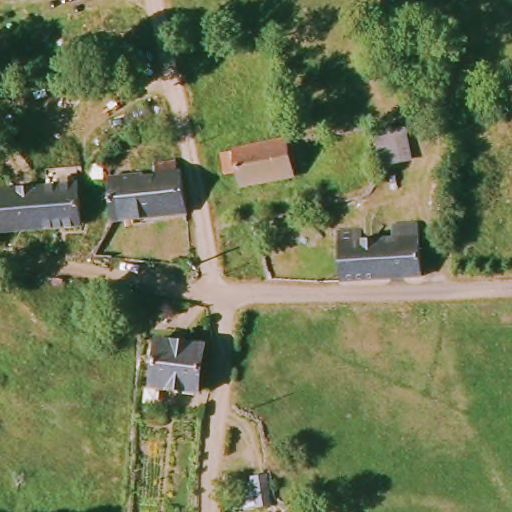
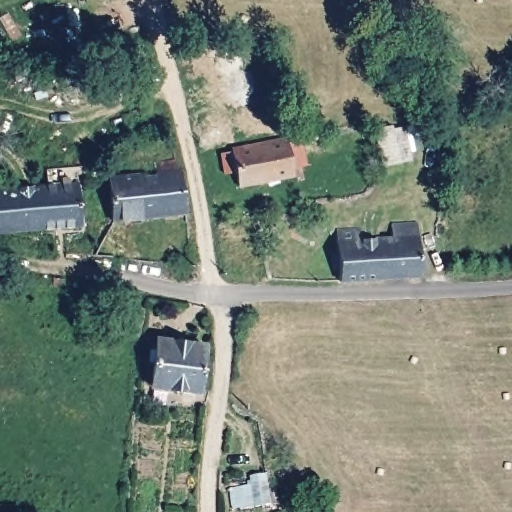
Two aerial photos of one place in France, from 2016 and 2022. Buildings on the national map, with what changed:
unchanged [(379,164),(374,130),(403,125),(411,158),(379,164)]
unchanged [(294,146),(299,176),(289,178),(289,186),(256,192),(256,195),(234,197),(228,158),(284,148),(294,146)]
unchanged [(110,225),(106,182),(155,177),(154,166),(174,164),(176,175),(181,175),(187,218),(110,225)]
unchanged [(0,182),(3,182),(4,192),(78,187),(81,230),(0,236),(0,182)]
unchanged [(334,284),(333,235),(351,234),(356,244),(386,242),(387,229),(413,227),(416,279),(334,284)]
unchanged [(151,386),(156,339),(203,344),(199,390),(151,386)]
unchanged [(256,506),(252,474),(266,473),(271,503),(256,506)]

